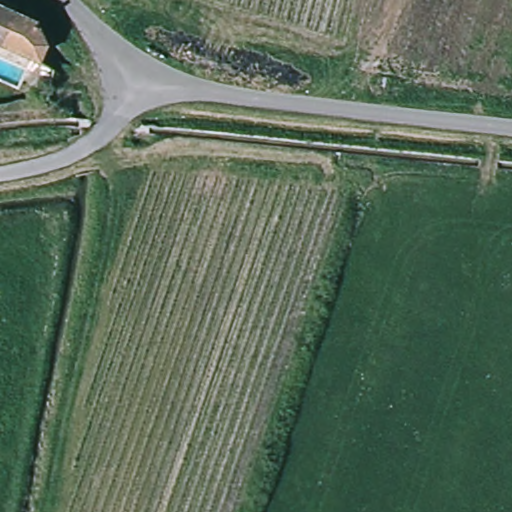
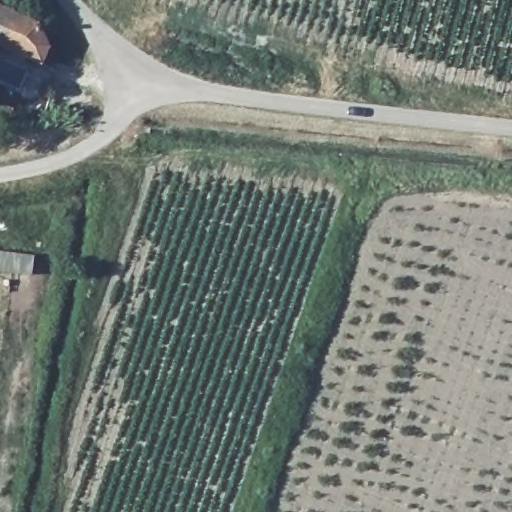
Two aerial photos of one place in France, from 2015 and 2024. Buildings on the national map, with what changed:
unchanged [(36,66),(0,50),(0,9),(35,26),(44,47),(36,66)]

